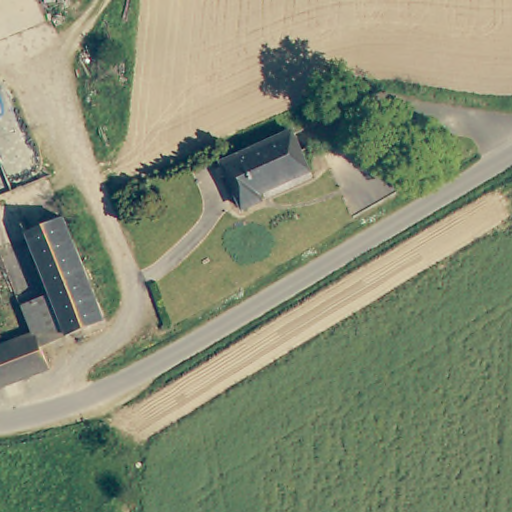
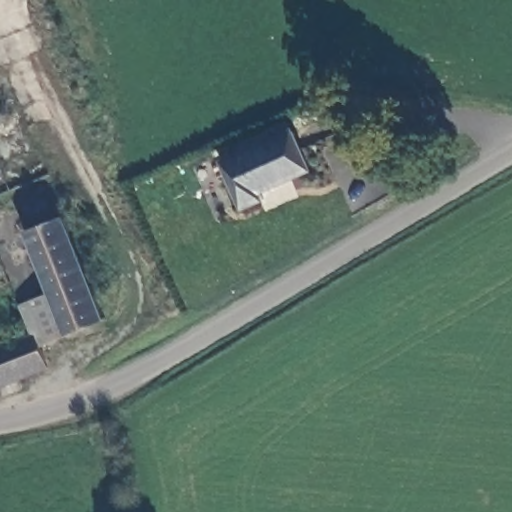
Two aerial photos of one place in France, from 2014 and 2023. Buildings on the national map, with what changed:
unchanged [(309,166),(258,191),(260,197),(243,206),(223,160),(292,128),(309,166)]
unchanged [(0,383),(0,344),(34,332),(22,303),(54,290),(29,229),(68,214),(109,317),(41,340),(50,365),(0,383)]

